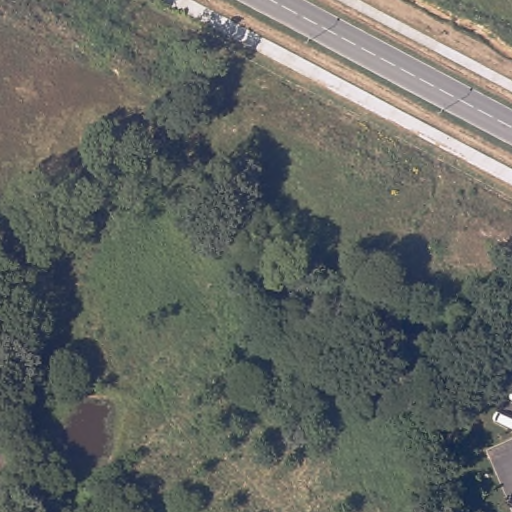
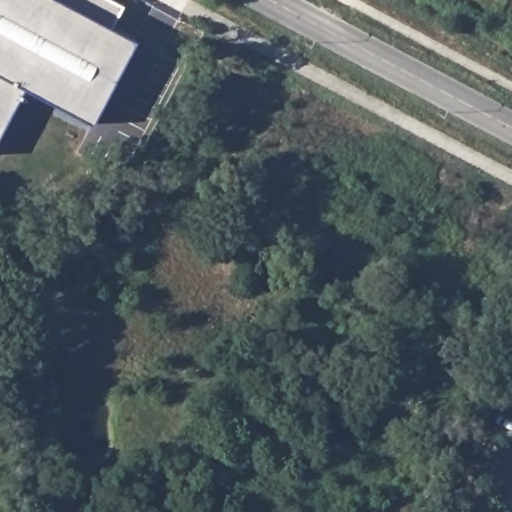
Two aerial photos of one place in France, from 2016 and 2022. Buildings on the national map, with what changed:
new [(130,38),(88,121),(19,86),(0,123),(0,0),(113,0),(121,4),(109,27),(130,38)]

